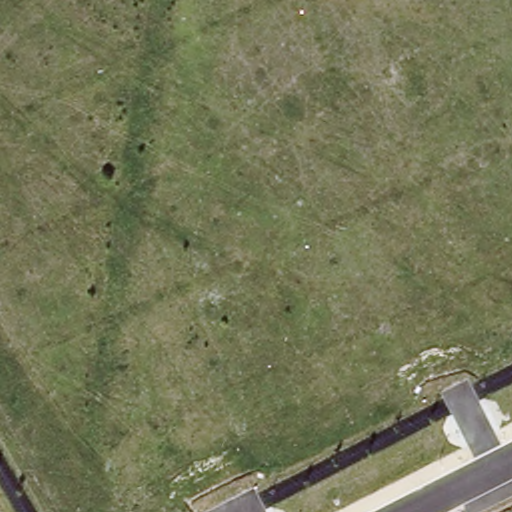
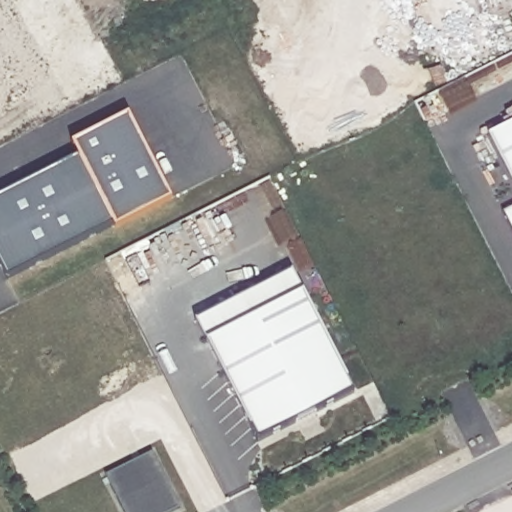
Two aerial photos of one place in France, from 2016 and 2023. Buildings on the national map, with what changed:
new [(113,223),(8,277),(0,262),(0,196),(79,156),(72,143),(128,114),(171,198),(114,227),(113,223)]
new [(487,135),(512,122),(512,182),(487,135)]
new [(503,213),(512,207),(512,230),(503,213)]
new [(256,441),(206,340),(196,319),(293,270),(304,291),(355,393),(256,441)]
new [(170,512),(125,512),(107,474),(151,453),(179,508),(170,512)]

